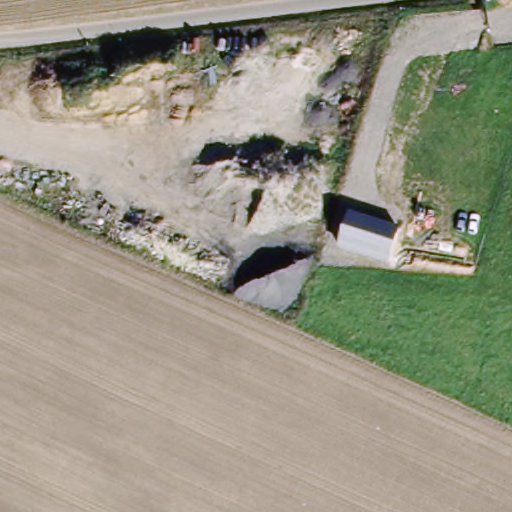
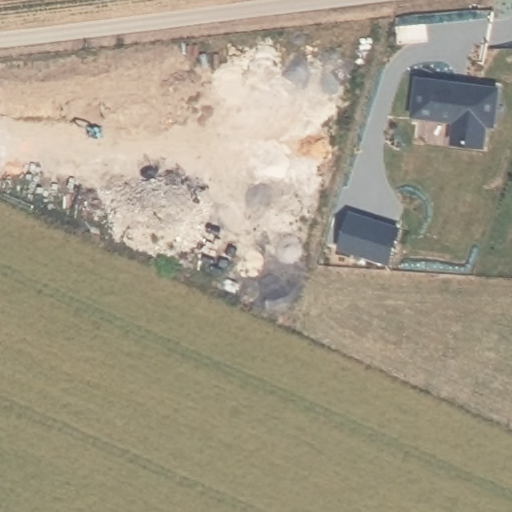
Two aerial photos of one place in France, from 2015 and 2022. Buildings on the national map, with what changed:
new [(456,86),(473,88),(499,91),(495,127),(487,126),(484,148),(453,144),(456,122),(414,117),(419,81),(456,86)]
unchanged [(400,228),(389,264),(338,248),(351,212),(400,228)]

